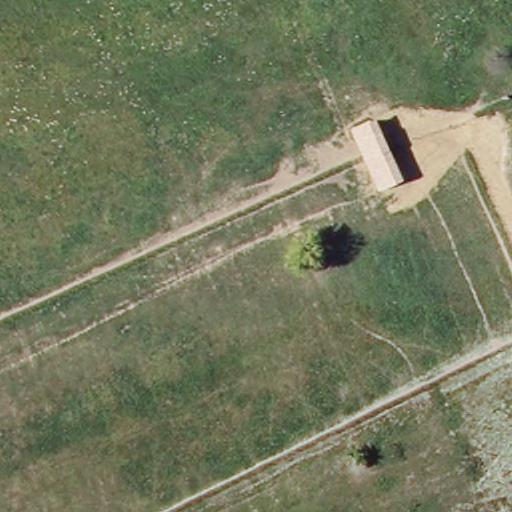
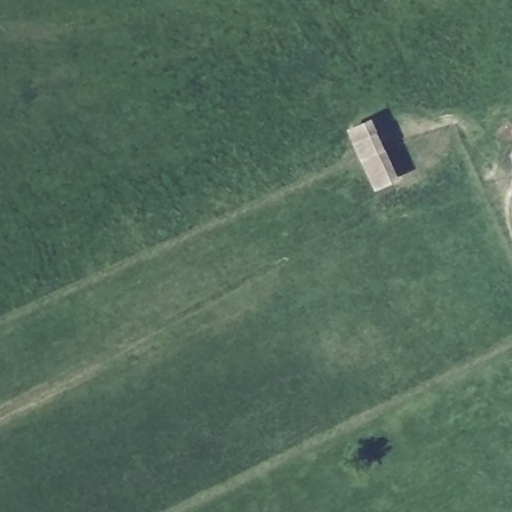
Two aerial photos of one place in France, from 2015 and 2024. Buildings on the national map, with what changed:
unchanged [(402,176),(377,187),(364,157),(351,125),(376,115),(389,146),(402,176)]

